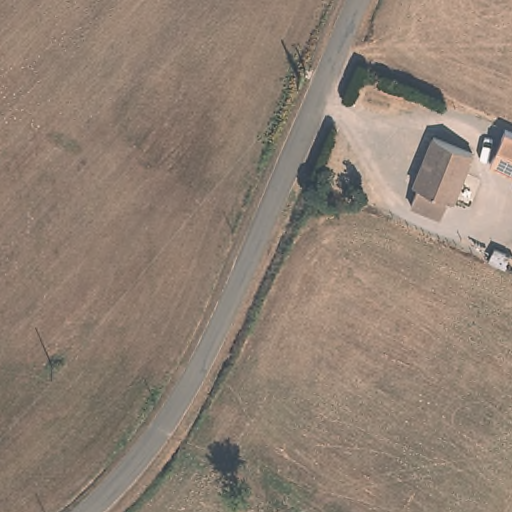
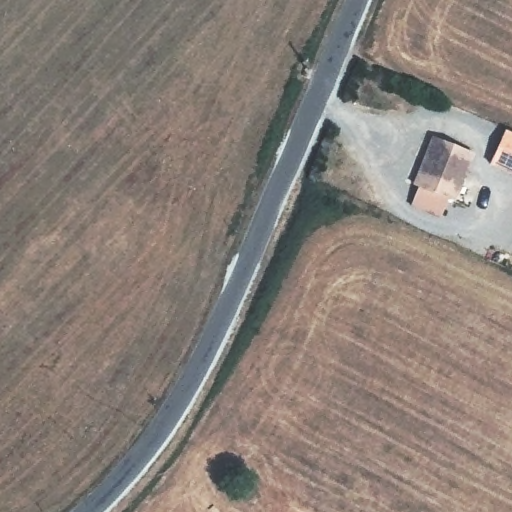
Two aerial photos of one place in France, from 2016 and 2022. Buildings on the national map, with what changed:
unchanged [(512,172),(491,162),(508,128),(512,130),(512,172)]
unchanged [(476,152),(455,200),(448,197),(438,215),(408,200),(416,185),(410,182),(434,132),(476,152)]

